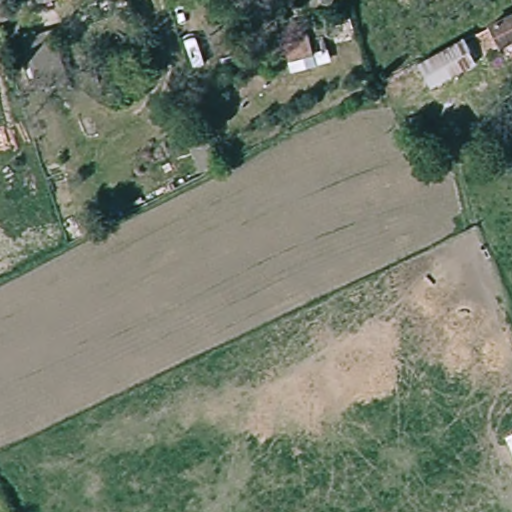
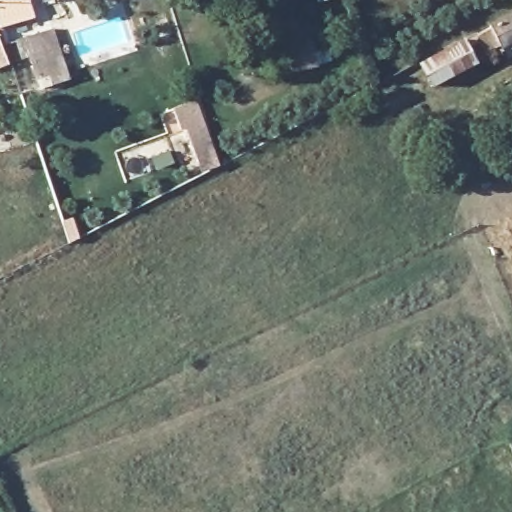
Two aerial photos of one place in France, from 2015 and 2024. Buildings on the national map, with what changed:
new [(0,28),(0,0),(29,0),(35,18),(0,28)]
unchanged [(492,24),(512,14),(512,42),(505,45),(492,24)]
unchanged [(69,79),(39,89),(23,42),(52,31),(69,79)]
new [(10,65),(0,69),(0,39),(10,65)]
unchanged [(477,64),(437,84),(423,60),(464,39),(477,64)]
new [(186,127),(181,129),(174,108),(198,101),(217,165),(199,170),(186,127)]

